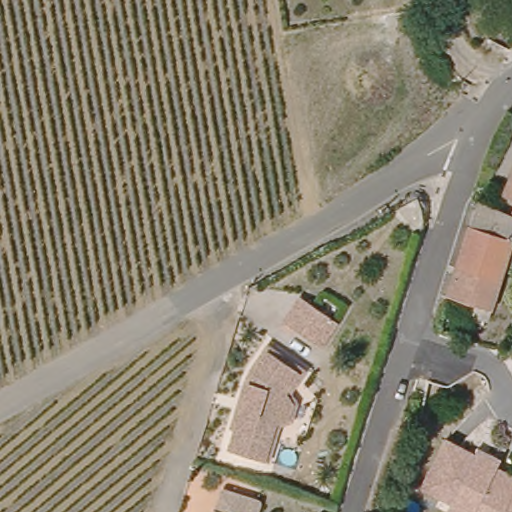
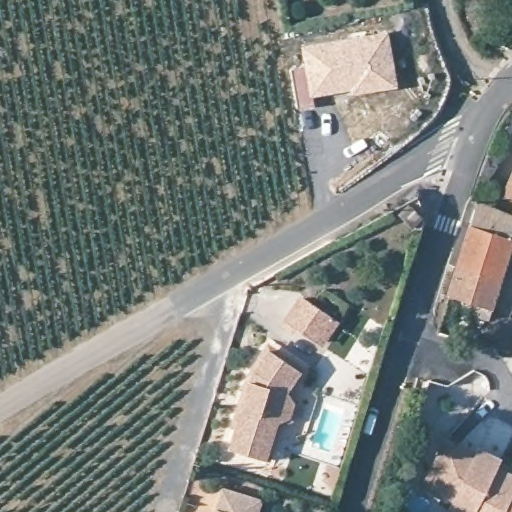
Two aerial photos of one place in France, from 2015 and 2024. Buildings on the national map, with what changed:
new [(300,45),(387,30),(398,86),(352,94),(351,91),(312,97),(313,106),(298,109),(290,68),(303,64),(300,45)]
unchanged [(512,206),(499,203),(512,167),(512,206)]
unchanged [(499,203),(512,206),(512,243),(492,310),(477,305),(479,296),(457,289),(467,250),(478,197),(490,200),(499,203)]
unchanged [(318,349),(280,322),(301,292),(343,323),(318,349)]
unchanged [(290,343),(303,364),(278,379),(287,395),(279,416),(266,424),(254,459),(219,447),(251,364),(290,343)]
unchanged [(475,455),(480,448),(503,461),(501,469),(512,474),(512,512),(450,512),(453,503),(423,489),(445,439),(475,455)]
unchanged [(223,486),(260,498),(256,512),(214,512),(223,486)]

